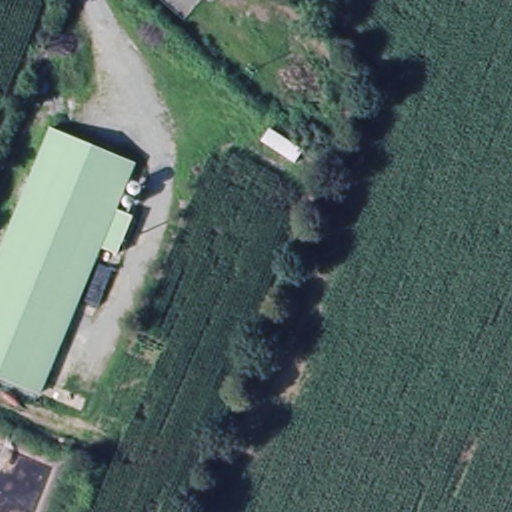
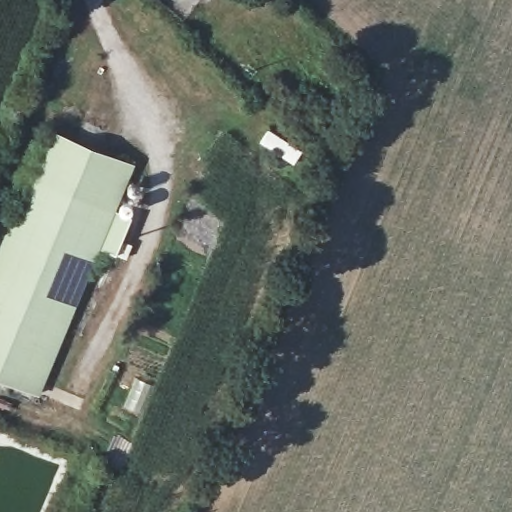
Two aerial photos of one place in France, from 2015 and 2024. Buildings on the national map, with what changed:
unchanged [(54,128),(135,161),(115,207),(34,175),(54,128)]
unchanged [(115,207),(131,213),(116,250),(100,244),(40,388),(0,372),(0,256),(34,175),(115,207)]

